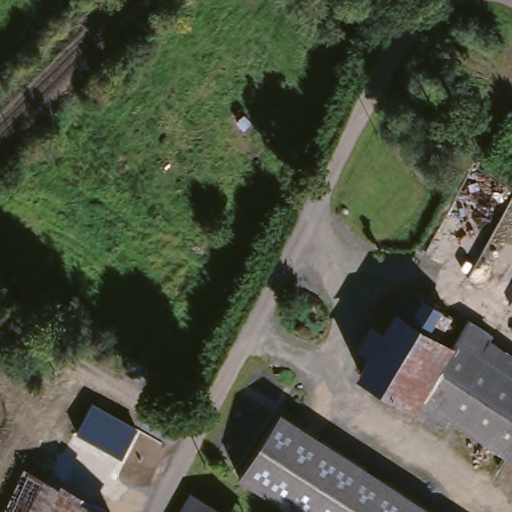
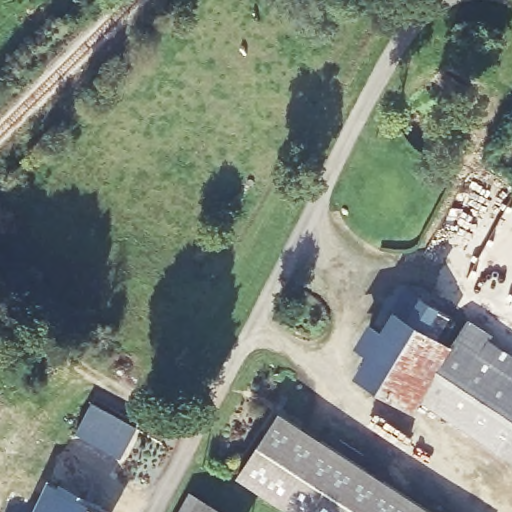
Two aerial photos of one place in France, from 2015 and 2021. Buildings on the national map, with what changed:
unchanged [(409,395),(398,387),(395,390),(357,367),(411,287),(449,309),(434,332),(447,338),(409,395)]
unchanged [(462,324),(468,313),(492,331),(490,338),(512,353),(512,457),(416,391),(462,324)]
unchanged [(87,412),(132,436),(122,453),(76,432),(87,412)]
unchanged [(368,467),(377,474),(435,512),(293,512),(272,498),(260,490),(242,478),(285,412),(298,422),(368,467)]
unchanged [(13,512),(28,480),(100,512),(13,512)]
unchanged [(227,512),(180,512),(189,492),(227,512)]

